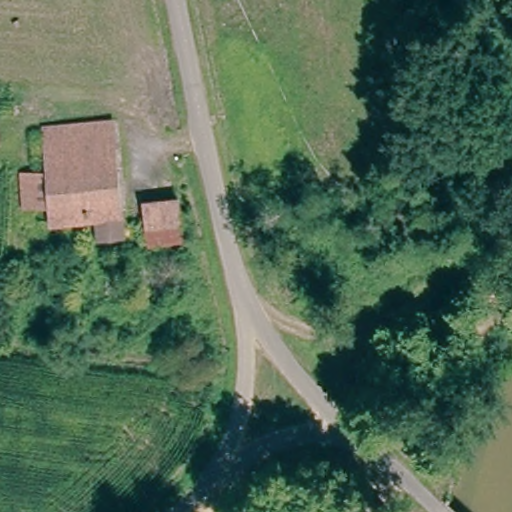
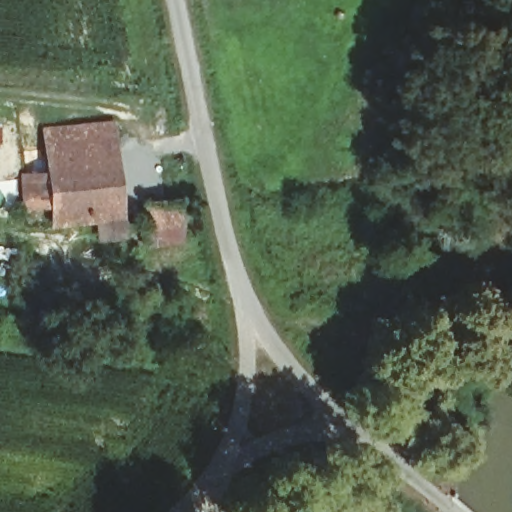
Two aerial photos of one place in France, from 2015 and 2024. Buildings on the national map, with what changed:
unchanged [(90,224),(45,226),(46,208),(19,210),(15,168),(38,170),(38,127),(111,119),(122,236),(91,241),(90,224)]
unchanged [(137,200),(178,194),(181,241),(143,247),(137,200)]

